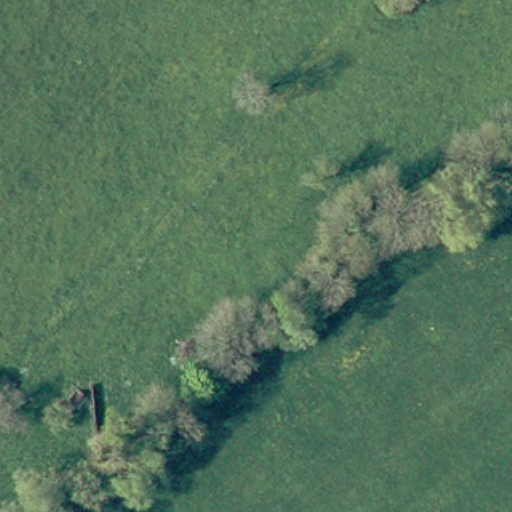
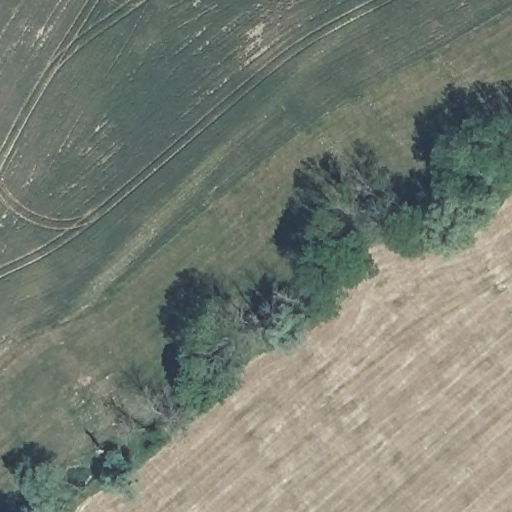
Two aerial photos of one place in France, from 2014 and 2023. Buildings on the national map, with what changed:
unchanged [(86,395),(74,410),(64,401),(75,387),(86,395)]

